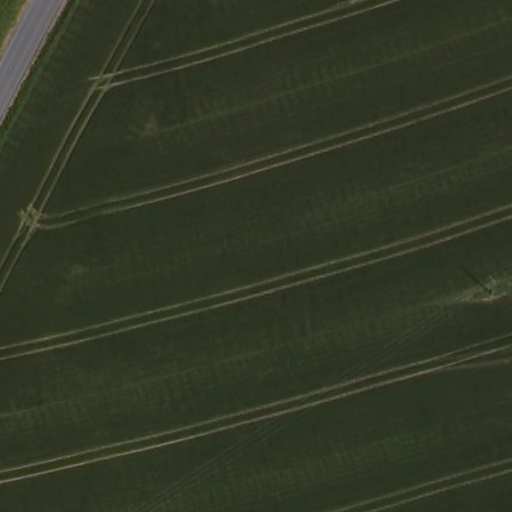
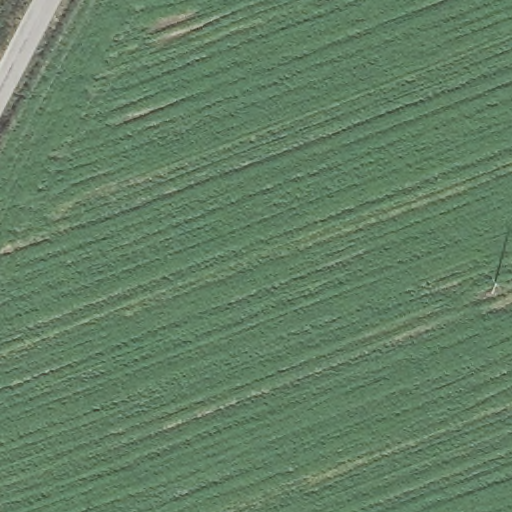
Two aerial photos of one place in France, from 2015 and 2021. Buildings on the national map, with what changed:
[]

